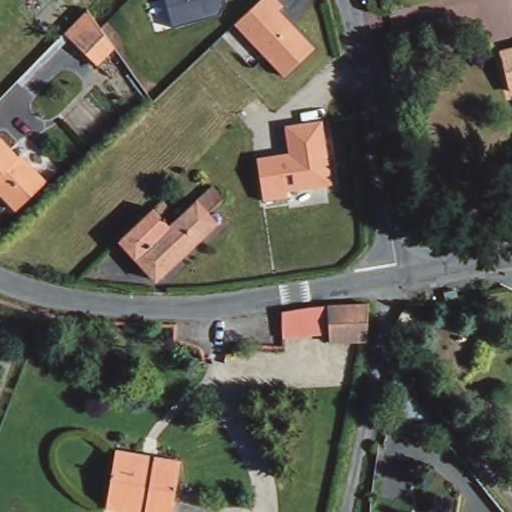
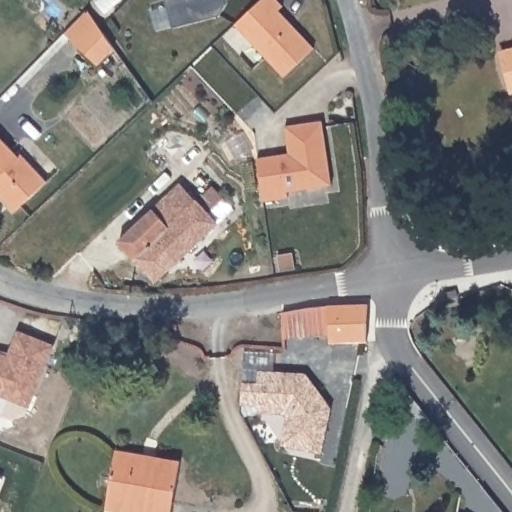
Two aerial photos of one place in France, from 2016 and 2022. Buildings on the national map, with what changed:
unchanged [(218,16),(172,27),(165,0),(226,0),(218,16)]
unchanged [(261,0),(277,0),(283,5),(279,10),(313,49),(283,77),(235,26),(261,0)]
unchanged [(86,12),(115,51),(96,68),(64,35),(86,12)]
unchanged [(504,96),(491,56),(512,50),(512,94),(504,96)]
unchanged [(321,121),(330,186),(285,192),(286,198),(263,201),(257,160),(288,155),(285,126),(321,121)]
unchanged [(45,180),(16,208),(0,191),(0,140),(10,150),(19,159),(21,156),(45,180)]
new [(179,184),(195,200),(168,225),(159,215),(169,206),(162,199),(179,184)]
unchanged [(169,206),(159,215),(168,225),(212,185),(224,197),(208,212),(218,222),(155,280),(118,241),(162,199),(169,206)]
unchanged [(315,307),(367,305),(366,343),(327,345),(326,334),(282,336),(280,312),(315,307)]
new [(0,395),(0,354),(8,357),(16,331),(55,345),(30,406),(0,395)]
new [(305,373),(331,410),(321,455),(286,447),(282,440),(286,418),(284,415),(260,414),(255,406),(241,404),(242,382),(258,382),(258,371),(305,373)]
unchanged [(114,448),(179,460),(169,512),(123,512),(103,508),(106,490),(114,448)]

